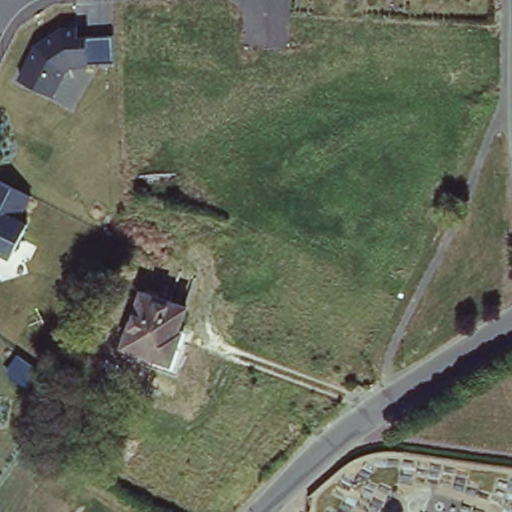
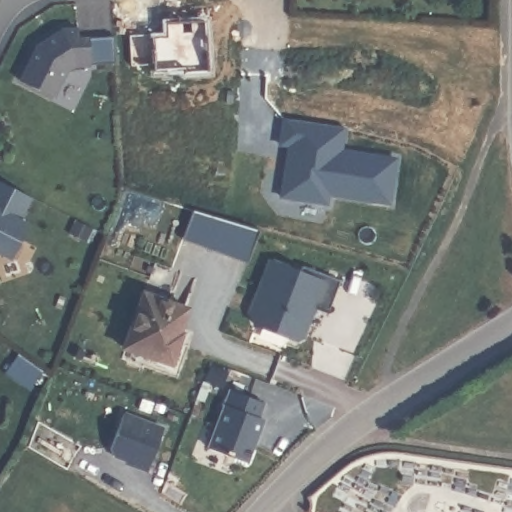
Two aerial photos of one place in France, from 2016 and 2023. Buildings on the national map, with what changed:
unchanged [(90,64),(73,67),(65,73),(54,95),(17,78),(35,43),(59,28),(84,21),(85,38),(114,36),(115,60),(90,64)]
new [(286,154),(292,156),(295,145),(278,142),(283,116),(344,127),(340,149),(393,159),(385,202),(325,191),(323,202),(278,194),(286,154)]
unchanged [(11,260),(0,255),(0,181),(31,197),(21,221),(27,223),(11,260)]
new [(281,251),(342,272),(332,302),(318,298),(306,329),(259,316),(281,251)]
unchanged [(193,290),(179,362),(120,354),(135,281),(193,290)]
new [(249,461),(209,447),(227,390),(267,403),(249,461)]
new [(151,462),(111,448),(125,410),(164,424),(151,462)]

